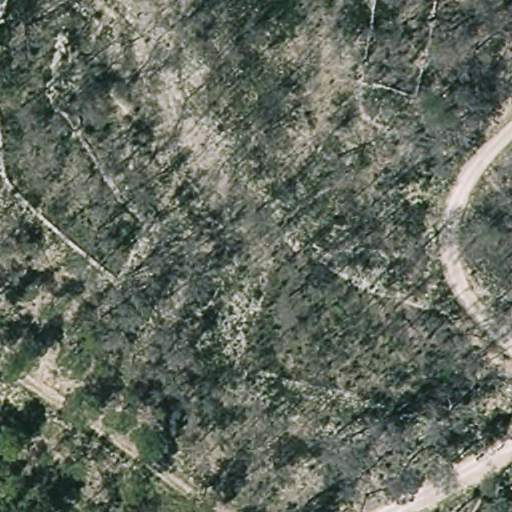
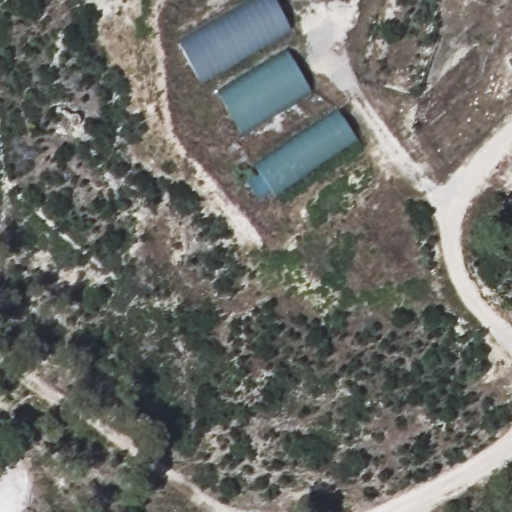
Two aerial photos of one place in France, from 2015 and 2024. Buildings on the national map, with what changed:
new [(274,0),(290,30),(199,84),(178,44),(254,0),(274,0)]
new [(284,61),(309,97),(239,147),(213,110),(284,61)]
new [(333,107),(358,144),(276,200),(250,162),(333,107)]

